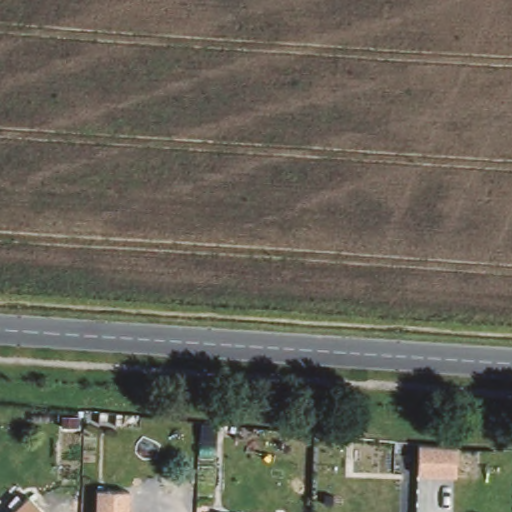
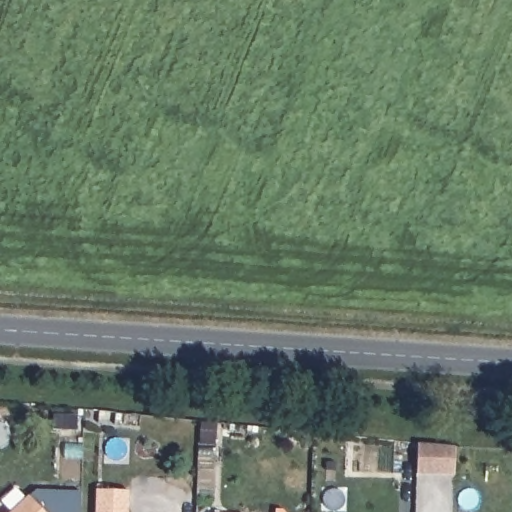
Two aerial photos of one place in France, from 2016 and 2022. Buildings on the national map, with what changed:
unchanged [(145,407),(143,420),(100,416),(102,403),(145,407)]
unchanged [(447,448),(446,476),(408,475),(410,444),(447,448)]
new [(80,492),(79,512),(38,512),(25,499),(36,490),(80,492)]
unchanged [(122,494),(122,512),(89,512),(90,493),(122,494)]
unchanged [(38,512),(11,512),(25,499),(38,512)]

